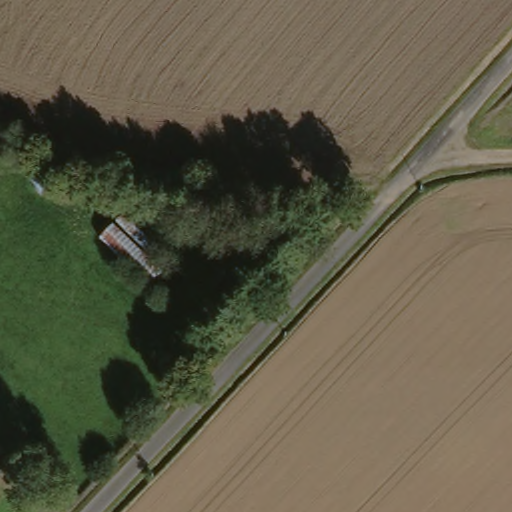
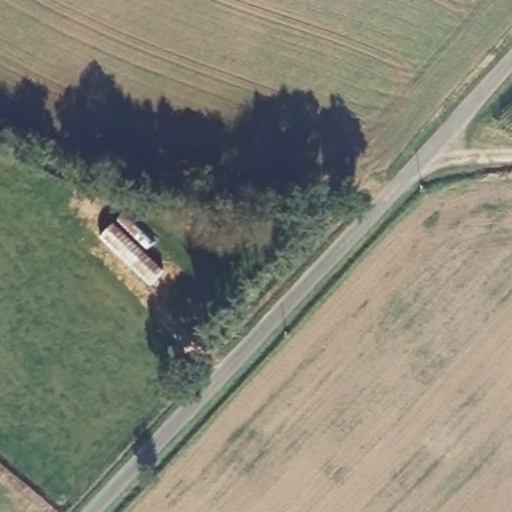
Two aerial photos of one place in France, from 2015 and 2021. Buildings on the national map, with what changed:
unchanged [(114,225),(167,270),(150,288),(99,241),(114,225)]

